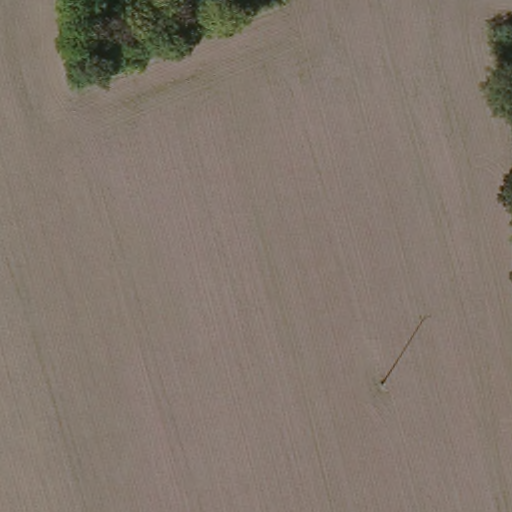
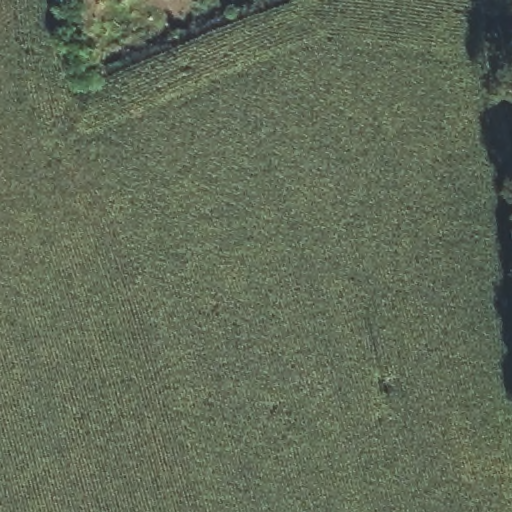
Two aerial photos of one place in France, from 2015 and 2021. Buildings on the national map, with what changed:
unchanged [(54,0),(155,0),(157,14),(56,24),(54,0)]

